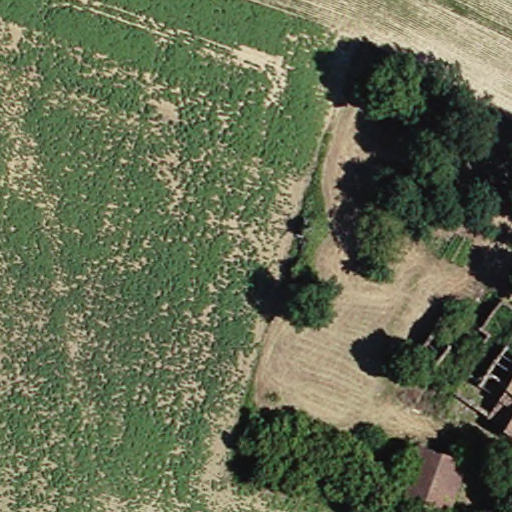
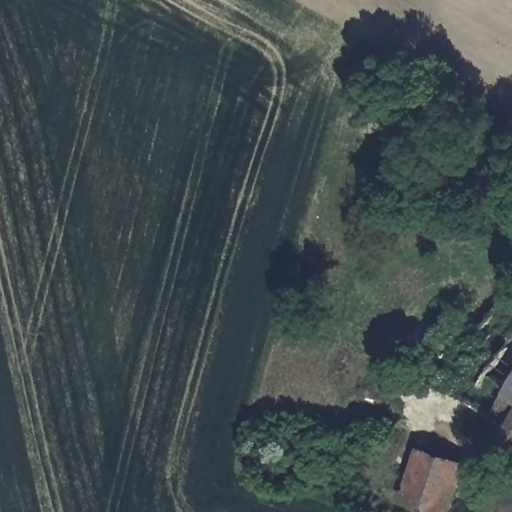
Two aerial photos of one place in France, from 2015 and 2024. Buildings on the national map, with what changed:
unchanged [(485,414),(512,373),(512,431),(485,414)]
unchanged [(511,439),(512,437),(512,440),(511,439)]
unchanged [(468,466),(453,512),(441,512),(410,502),(425,449),(468,466)]

